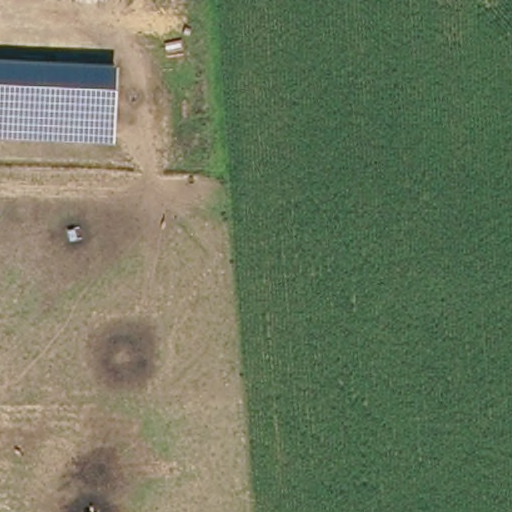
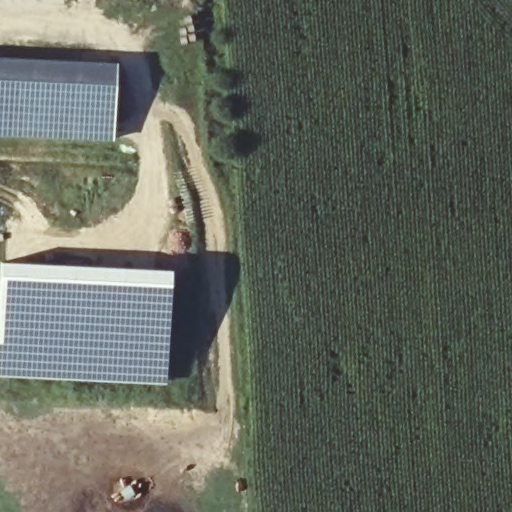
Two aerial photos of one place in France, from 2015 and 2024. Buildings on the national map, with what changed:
unchanged [(114,140),(0,135),(0,57),(118,63),(114,140)]
new [(163,379),(0,372),(0,260),(168,270),(163,379)]

